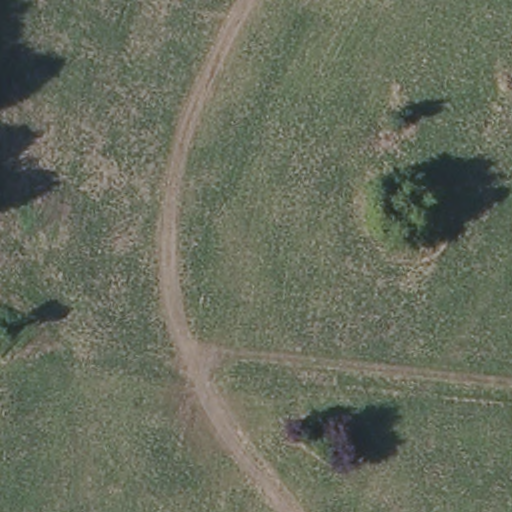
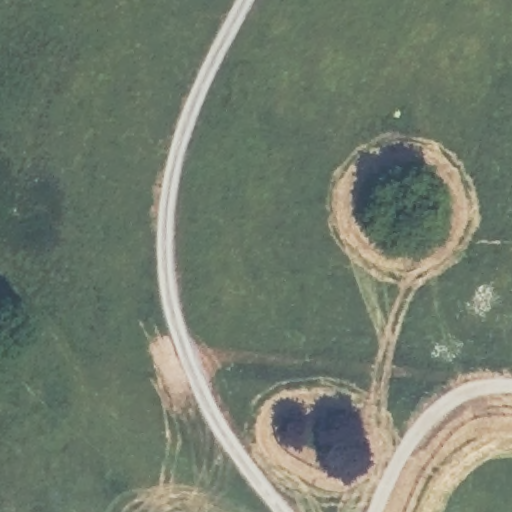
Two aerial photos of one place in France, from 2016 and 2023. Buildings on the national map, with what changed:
[]

